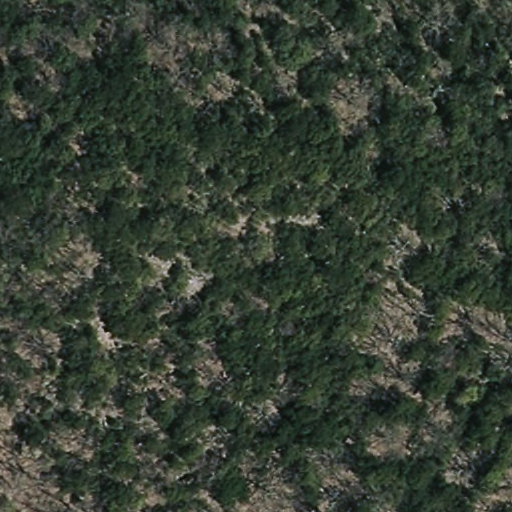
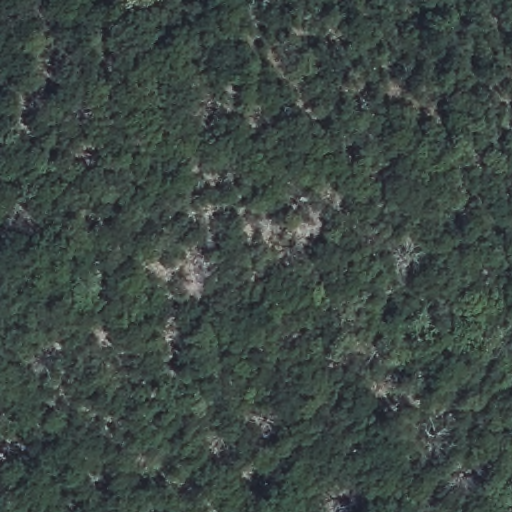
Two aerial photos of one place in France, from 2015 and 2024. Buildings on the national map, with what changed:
[]

